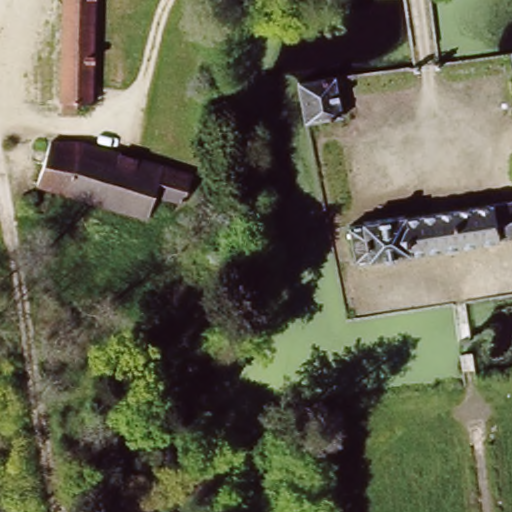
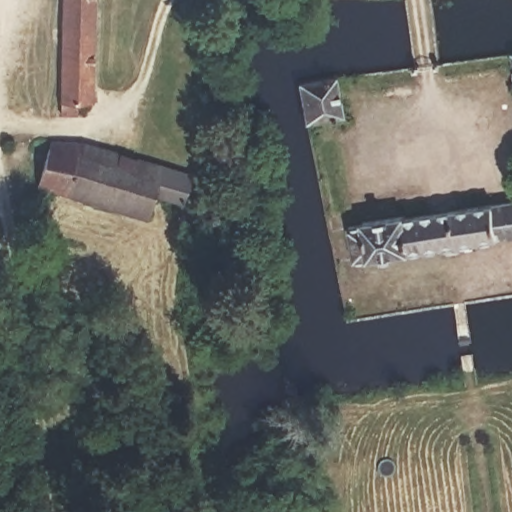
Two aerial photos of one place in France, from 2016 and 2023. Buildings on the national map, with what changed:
unchanged [(51,105),(55,0),(95,0),(93,104),(51,105)]
unchanged [(336,117),(305,123),(298,86),(331,81),(336,117)]
unchanged [(57,189),(65,139),(187,169),(182,191),(180,203),(147,197),(141,213),(57,189)]
unchanged [(472,240),(472,252),(438,262),(432,250),(339,268),(332,227),(424,212),(424,196),(461,187),(464,201),(512,189),(512,232),(472,240)]

